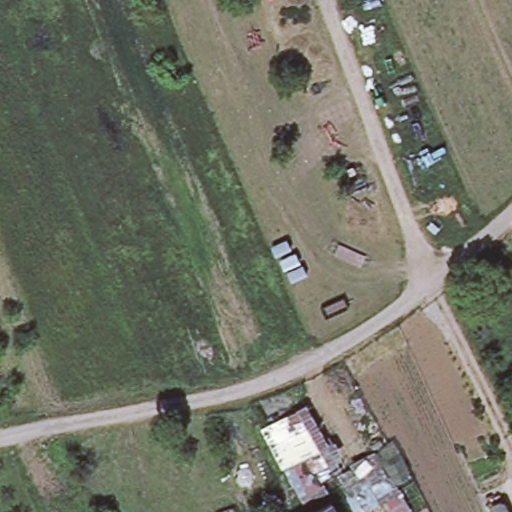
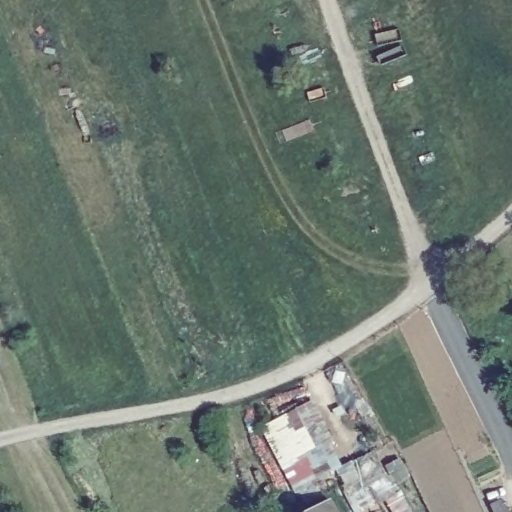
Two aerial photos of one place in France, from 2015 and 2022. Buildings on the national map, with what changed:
unchanged [(512,386),(512,395),(509,388),(512,386)]
unchanged [(301,502),(282,467),(269,444),(311,422),(324,445),(332,458),(332,472),(325,477),(330,487),(301,502)]
unchanged [(356,512),(344,488),(376,472),(378,477),(388,473),(398,491),(403,488),(416,512),(394,512),(386,498),(359,512),(356,512)]
unchanged [(503,502),(507,512),(494,512),(492,508),(503,502)]
unchanged [(337,512),(318,512),(334,506),(337,512)]

